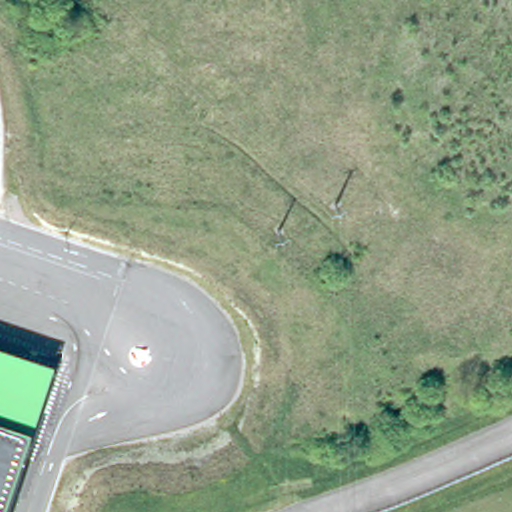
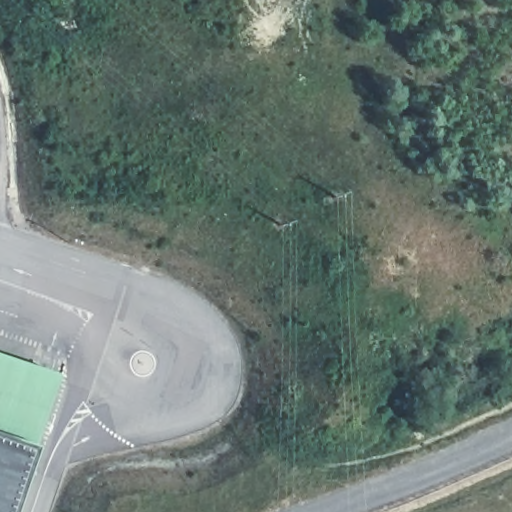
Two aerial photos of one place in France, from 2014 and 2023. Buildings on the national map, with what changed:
unchanged [(55,375),(30,447),(0,437),(0,357),(55,375)]
unchanged [(30,447),(31,447),(9,512),(0,512),(0,437),(30,447)]

